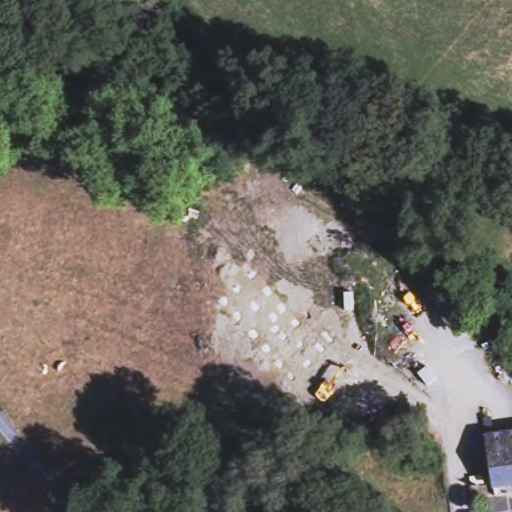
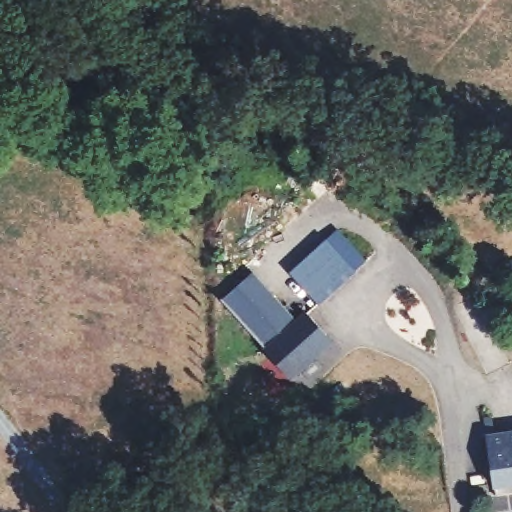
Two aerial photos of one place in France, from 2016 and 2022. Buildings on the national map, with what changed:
new [(326,239),(355,271),(319,304),(290,273),(326,239)]
new [(312,380),(303,372),(295,381),(220,306),(250,276),(297,323),(306,314),(328,336),(333,341),(325,350),(317,358),(325,367),(312,380)]
new [(495,411),(501,410),(503,427),(512,426),(512,482),(506,482),(506,481),(496,428),(495,411)]
demolished [(489,487),(482,432),(502,429),(512,428),(512,484),(489,487)]

